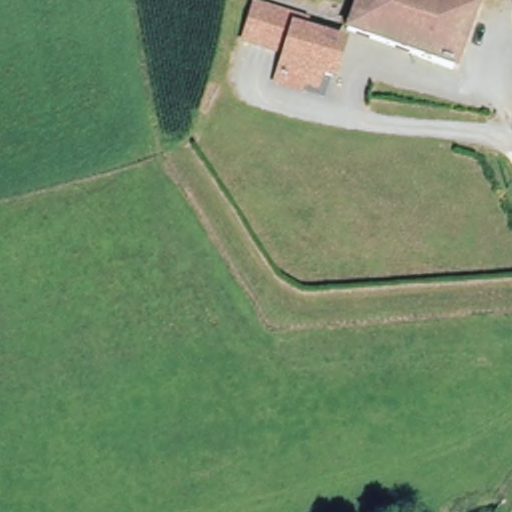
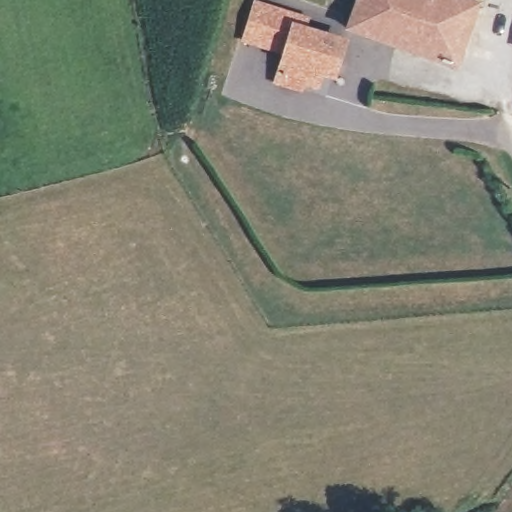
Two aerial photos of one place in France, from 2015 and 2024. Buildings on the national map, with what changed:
unchanged [(454,69),(344,31),(355,0),(462,0),(475,5),(454,69)]
unchanged [(271,82),(273,76),(280,53),(241,40),(252,5),(301,21),(298,30),(340,44),(329,77),(315,72),(308,94),(271,82)]

